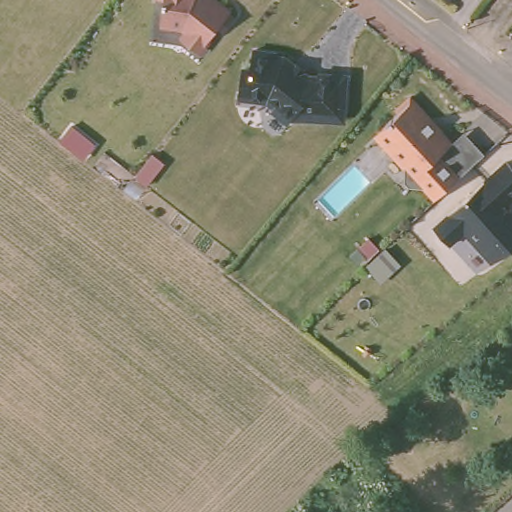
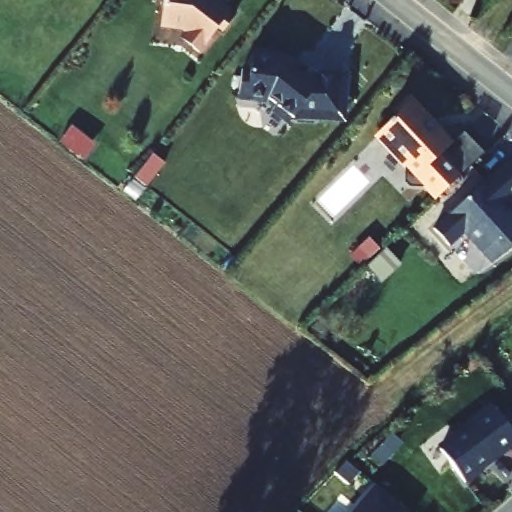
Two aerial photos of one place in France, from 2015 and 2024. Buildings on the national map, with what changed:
unchanged [(222,34),(203,58),(186,44),(193,36),(188,31),(166,25),(173,1),(170,0),(210,0),(239,23),(227,38),(222,34)]
unchanged [(253,75),(255,55),(280,58),(280,62),(288,63),(297,70),(299,68),(310,77),(309,79),(318,86),(320,83),(320,79),(350,81),(348,114),(341,113),(340,122),(320,121),(320,126),(296,124),(295,126),(288,126),(275,116),(278,112),(267,104),(265,104),(265,106),(246,104),(242,99),(245,74),(253,75)]
unchanged [(442,204),(430,191),(427,194),(415,193),(410,188),(410,176),(411,175),(381,141),(403,121),(400,118),(414,105),(433,126),(430,130),(453,155),(449,159),(443,164),(463,185),(442,204)]
unchanged [(443,164),(449,159),(453,155),(470,140),(490,161),(468,181),(463,185),(443,164)]
unchanged [(511,170),(512,170),(512,212),(511,213),(512,214),(512,260),(497,271),(469,240),(454,253),(438,236),(511,170)]
new [(512,430),(512,446),(483,467),(485,468),(465,483),(439,449),(455,437),(453,434),(493,405),(512,430)]
new [(375,487),(404,512),(353,512),(375,487)]

